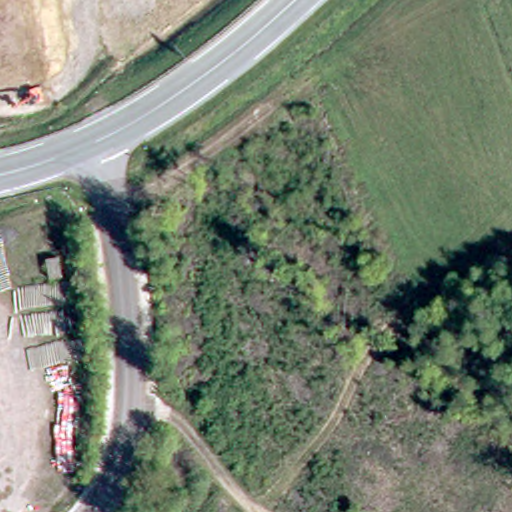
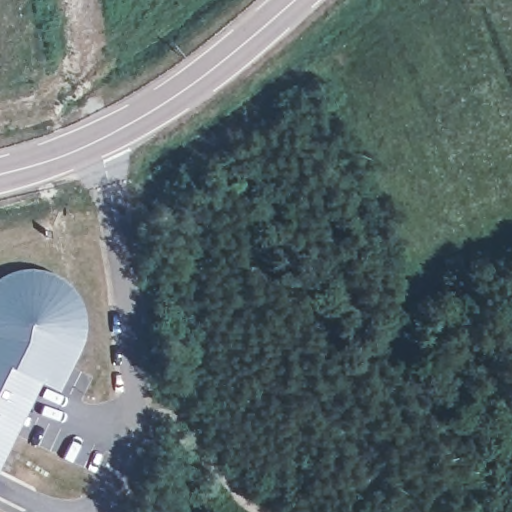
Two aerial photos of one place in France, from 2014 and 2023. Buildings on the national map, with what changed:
demolished [(68,279),(58,280),(54,258),(64,255),(68,279)]
new [(19,280),(29,279),(39,280),(50,284),(56,287),(66,296),(70,302),(74,312),(77,321),(77,331),(76,342),(72,351),(52,391),(35,383),(0,454),(0,287),(9,282),(19,280)]

